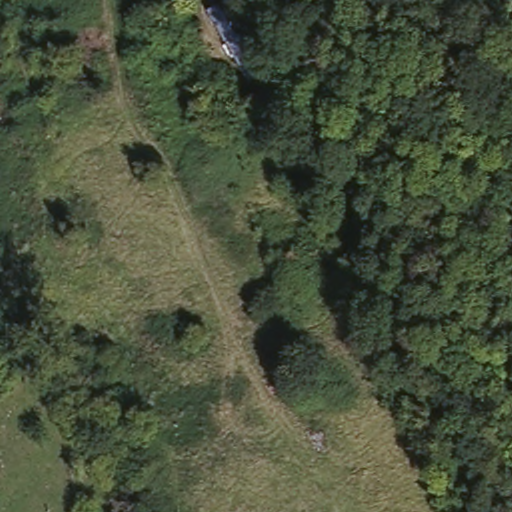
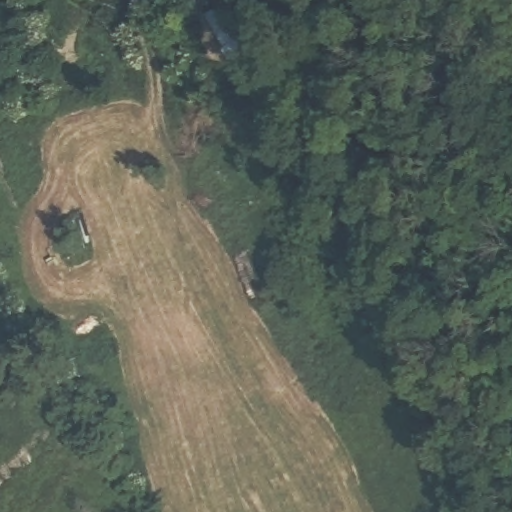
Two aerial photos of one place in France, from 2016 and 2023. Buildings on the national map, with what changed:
unchanged [(279,75),(260,88),(215,19),(234,6),(279,75)]
unchanged [(403,316),(387,324),(382,312),(388,309),(383,298),(394,293),(403,316)]

